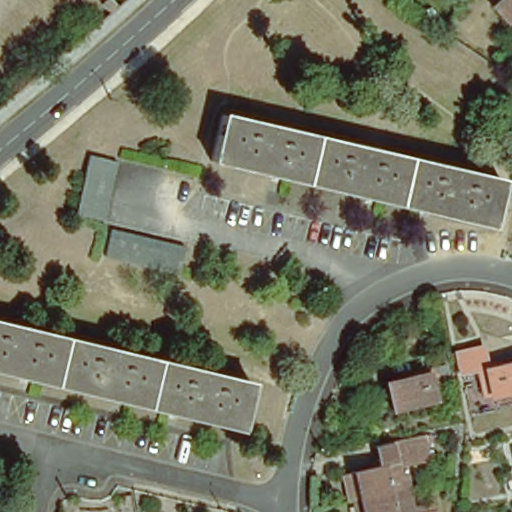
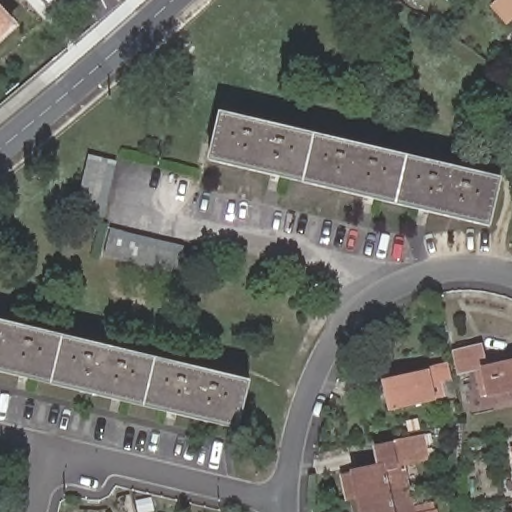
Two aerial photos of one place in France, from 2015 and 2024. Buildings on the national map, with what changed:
new [(44,0),(56,0),(50,6),(44,0)]
unchanged [(508,21),(493,5),(499,0),(512,0),(512,18),(508,21)]
new [(0,45),(0,7),(19,27),(0,45)]
unchanged [(500,180),(488,225),(210,160),(222,114),(500,180)]
unchanged [(90,155),(116,161),(115,165),(109,192),(102,220),(76,214),(90,155)]
unchanged [(106,256),(112,230),(183,246),(177,273),(106,256)]
unchanged [(237,433),(0,376),(0,329),(248,388),(237,433)]
unchanged [(474,370),(464,371),(460,350),(486,345),(491,368),(512,363),(512,392),(488,398),(482,400),(474,370)]
unchanged [(379,389),(388,387),(424,379),(423,375),(440,370),(443,388),(434,390),(439,412),(428,415),(426,405),(394,412),(385,414),(379,389)]
unchanged [(344,478),(367,473),(363,452),(379,448),(414,440),(419,465),(396,470),(397,477),(388,480),(391,494),(358,500),(349,502),(344,478)]
unchanged [(403,512),(360,512),(358,500),(391,494),(399,492),(403,512)]
unchanged [(424,508),(425,512),(407,512),(424,508)]

